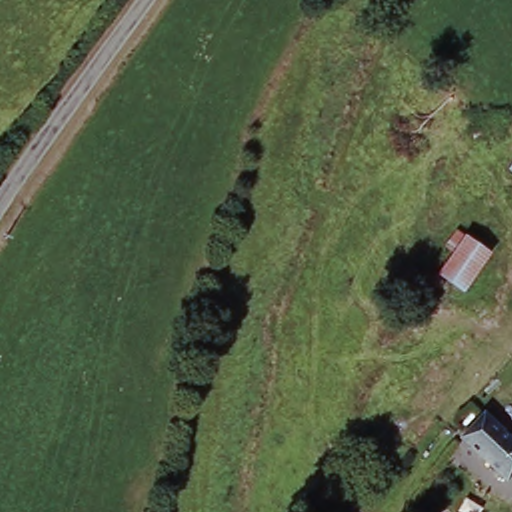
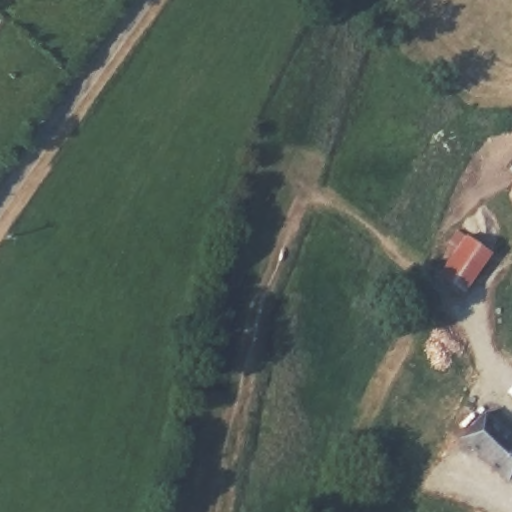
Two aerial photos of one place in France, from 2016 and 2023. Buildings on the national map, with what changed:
unchanged [(466,296),(442,276),(456,255),(447,248),(461,229),(469,237),(495,257),(466,296)]
unchanged [(482,414),(512,440),(512,481),(508,485),(460,440),(482,414)]

